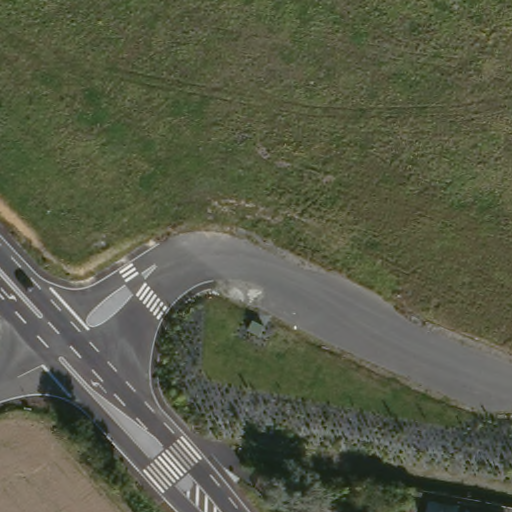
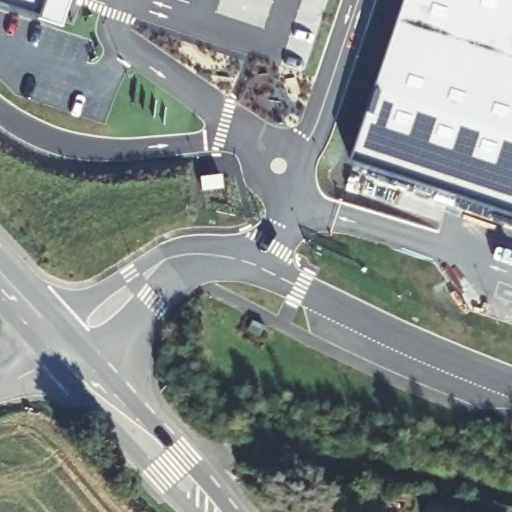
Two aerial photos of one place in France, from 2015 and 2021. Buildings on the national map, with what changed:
new [(0,6),(0,0),(41,0),(35,18),(0,6)]
new [(408,0),(512,0),(512,219),(352,164),(408,0)]
new [(220,176),(221,189),(201,191),(199,179),(220,176)]
unchanged [(398,504),(399,493),(420,496),(418,506),(398,504)]
unchanged [(426,507),(455,512),(425,512),(426,507)]

